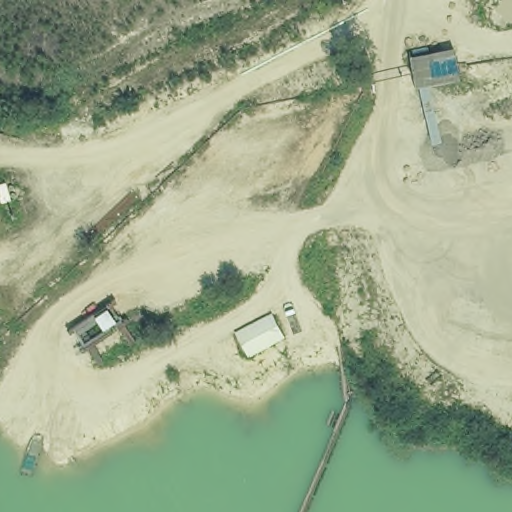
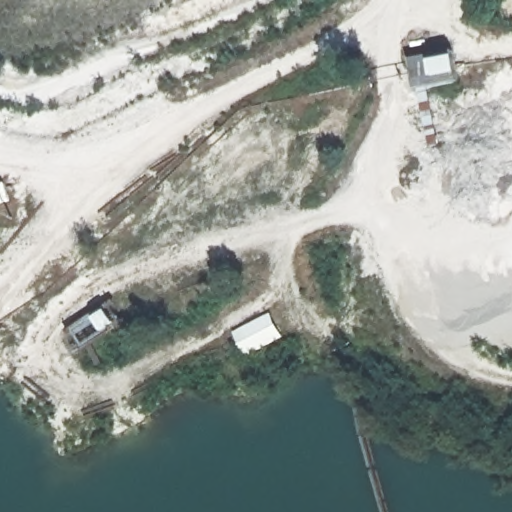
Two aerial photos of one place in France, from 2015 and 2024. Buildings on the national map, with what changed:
unchanged [(454,52),(459,82),(415,91),(409,60),(454,52)]
unchanged [(269,308),(283,335),(243,357),(230,331),(269,308)]

